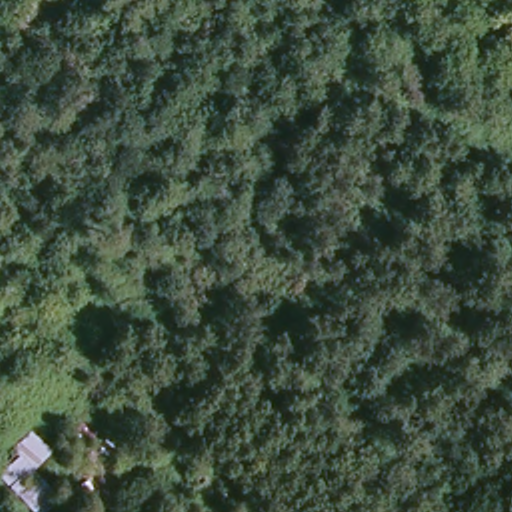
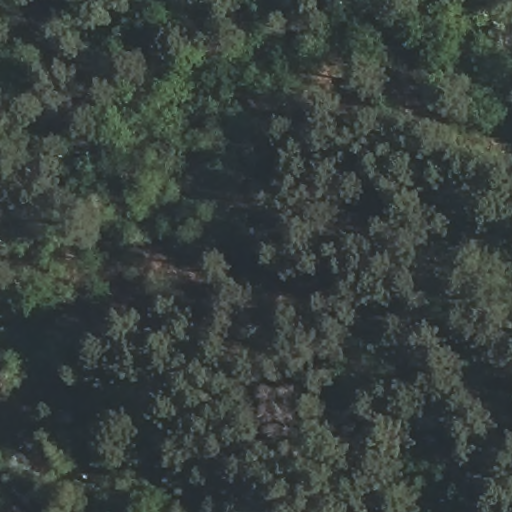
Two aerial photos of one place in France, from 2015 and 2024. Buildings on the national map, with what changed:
unchanged [(64,501),(49,512),(30,512),(0,478),(0,468),(16,453),(11,446),(31,430),(55,449),(35,469),(64,501)]
unchanged [(288,498),(307,512),(280,512),(278,510),(288,498)]

